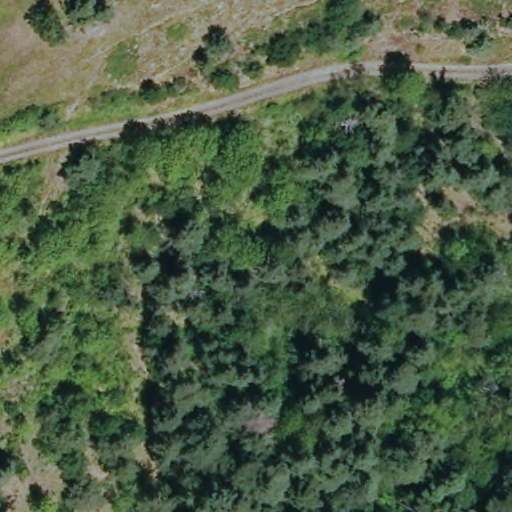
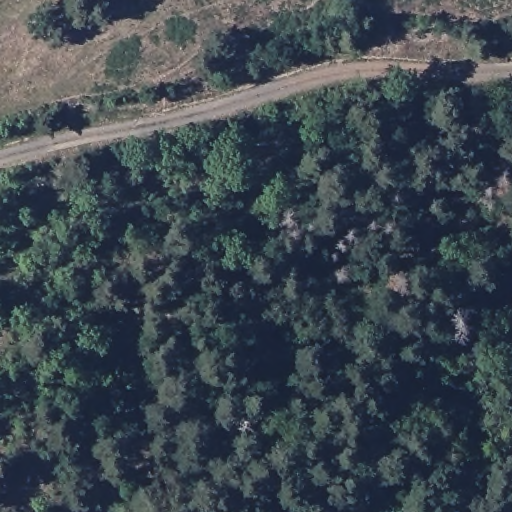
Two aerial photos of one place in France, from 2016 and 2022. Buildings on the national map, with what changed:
[]

